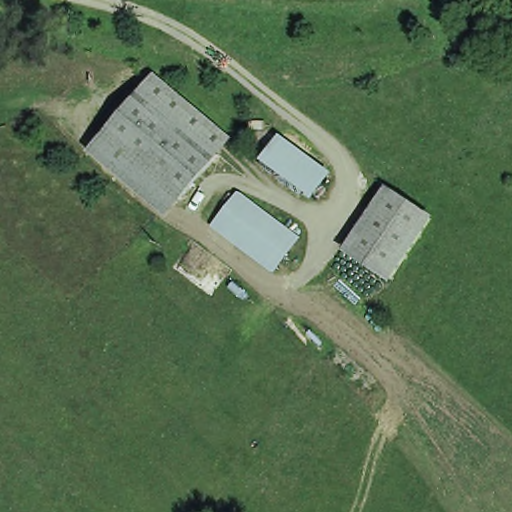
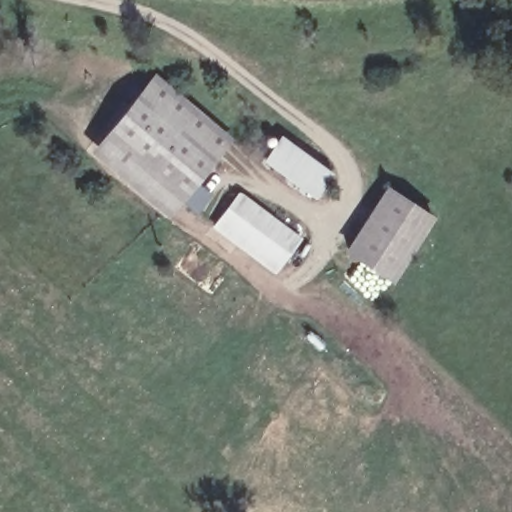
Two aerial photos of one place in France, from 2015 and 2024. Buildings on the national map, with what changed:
unchanged [(191,187),(155,156),(113,122),(150,77),(228,142),(191,187)]
unchanged [(155,156),(191,187),(165,218),(87,151),(113,122),(155,156)]
unchanged [(331,175),(318,200),(258,166),(281,133),(331,175)]
unchanged [(431,215),(438,219),(395,290),(390,287),(338,252),(385,188),(431,215)]
unchanged [(303,239),(275,276),(208,227),(237,192),(303,239)]

